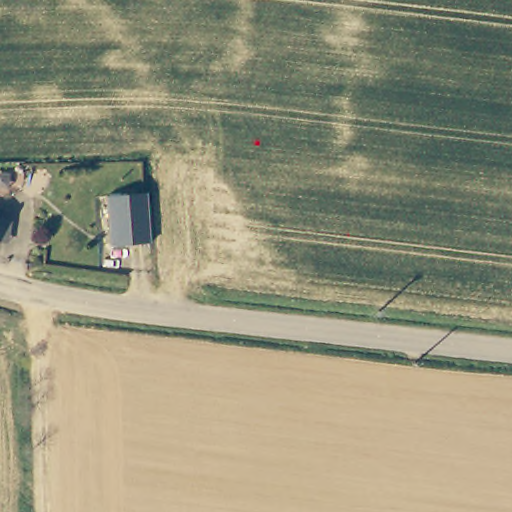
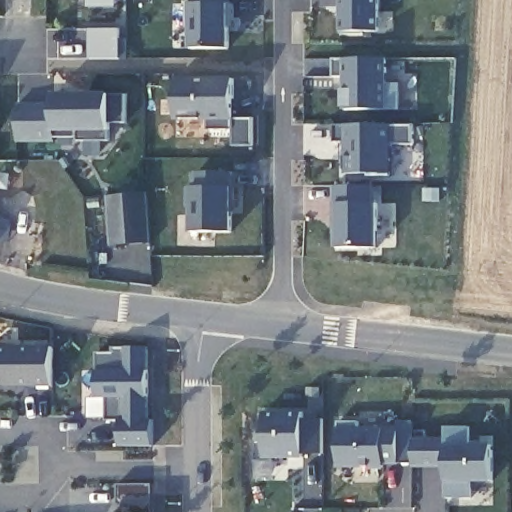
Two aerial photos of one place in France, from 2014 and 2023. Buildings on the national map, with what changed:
new [(117,6),(88,6),(88,0),(117,0),(117,6)]
new [(228,6),(230,50),(189,50),(190,5),(196,5),(196,0),(228,0),(228,6)]
new [(380,33),(339,34),(338,0),(380,0),(380,33)]
new [(401,109),(387,110),(342,110),(342,76),(334,77),(335,59),(343,58),(387,57),(387,84),(401,84),(401,109)]
new [(234,119),(254,119),(253,145),(233,145),(233,129),(209,129),(208,120),(176,121),(174,78),(234,77),(234,119)]
new [(110,122),(110,138),(55,138),(56,142),(18,142),(18,104),(54,104),(52,96),(109,96),(125,97),(126,121),(110,122)]
new [(414,142),(391,144),(390,175),(344,174),(344,126),(414,126),(414,142)]
new [(233,187),(233,233),(191,233),(191,189),(198,189),(196,174),(234,172),(233,187)]
new [(376,205),(378,250),(335,250),(336,202),(333,187),(375,186),(376,205)]
unchanged [(144,188),(147,238),(107,241),(104,191),(144,188)]
new [(53,387),(0,387),(0,346),(54,346),(53,387)]
new [(115,353),(116,348),(149,349),(149,418),(154,418),(153,445),(120,445),(120,421),(108,421),(108,397),(97,397),(96,353),(115,353)]
new [(304,412),(304,418),(323,418),(323,455),(304,455),(303,460),(273,458),(272,460),(256,460),(256,442),(263,442),(263,412),(304,412)]
new [(339,422),(359,423),(360,428),(399,428),(399,465),(385,466),(385,468),(338,467),(339,422)]
new [(446,440),(446,428),(469,427),(469,446),(493,445),(493,481),(472,481),(472,498),(446,498),(447,466),(413,466),(413,439),(446,440)]

